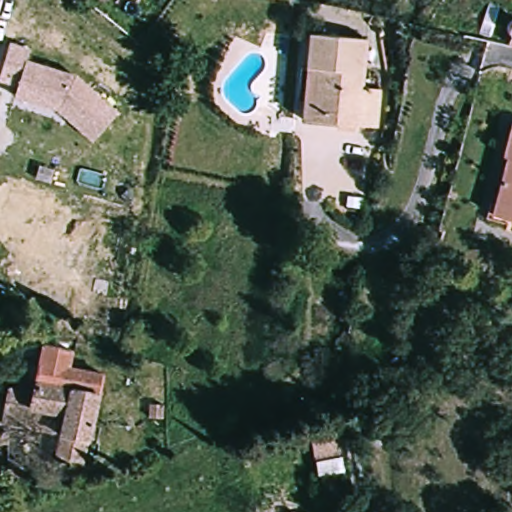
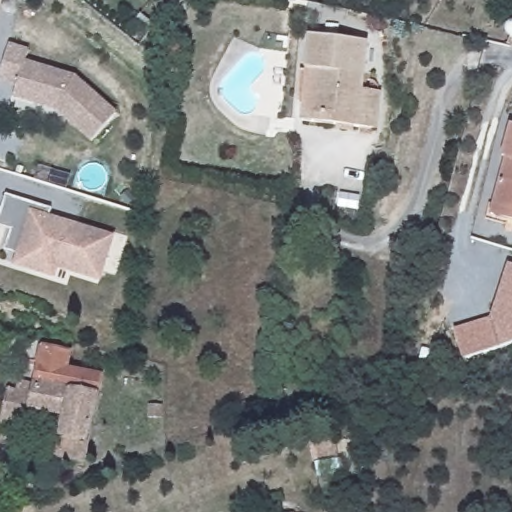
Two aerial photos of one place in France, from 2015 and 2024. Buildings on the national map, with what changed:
unchanged [(307,66),(310,31),(366,36),(362,83),(380,84),(376,126),(336,122),(302,119),(307,66)]
unchanged [(22,91),(2,86),(13,50),(34,57),(30,68),(64,78),(80,83),(121,120),(96,148),(60,116),(51,113),(40,109),(18,102),(22,91)]
unchanged [(504,161),(498,160),(507,123),(512,125),(512,222),(490,216),(493,206),(504,161)]
new [(101,281),(58,268),(56,278),(13,266),(16,253),(5,250),(12,229),(0,226),(0,215),(6,194),(52,208),(50,214),(115,233),(101,281)]
new [(512,264),(512,346),(501,350),(464,360),(454,328),(490,318),(508,263),(512,264)]
unchanged [(48,406),(35,403),(30,402),(33,390),(46,342),(70,349),(67,362),(105,372),(82,460),(53,453),(61,423),(45,419),(48,406)]
unchanged [(33,390),(30,402),(35,403),(27,425),(0,421),(7,385),(33,390)]

